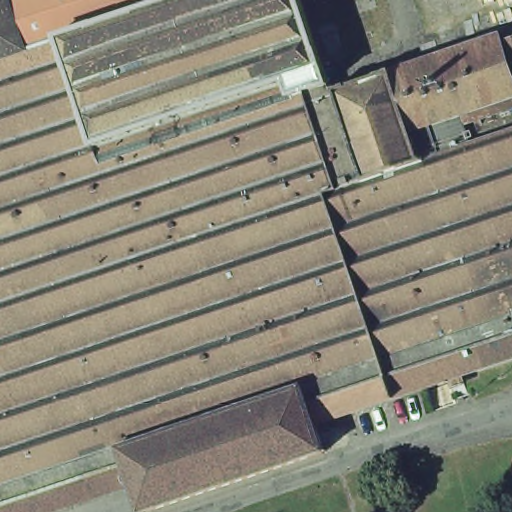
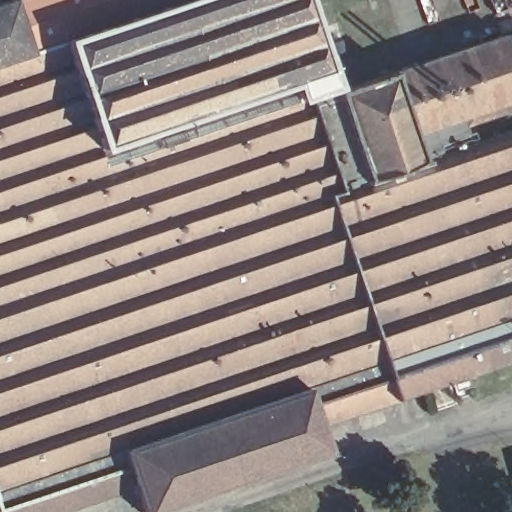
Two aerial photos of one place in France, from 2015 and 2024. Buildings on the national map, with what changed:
unchanged [(302,0),(333,91),(501,35),(504,42),(512,40),(512,108),(460,127),(466,146),(512,130),(512,359),(317,425),(320,432),(326,452),(147,512),(141,512),(134,490),(132,487),(126,466),(0,508),(0,4),(11,0),(302,0)]
unchanged [(59,512),(0,512),(0,508),(126,466),(132,487),(59,512)]

